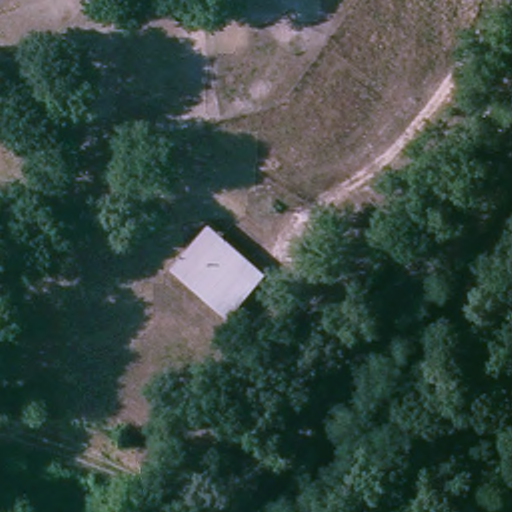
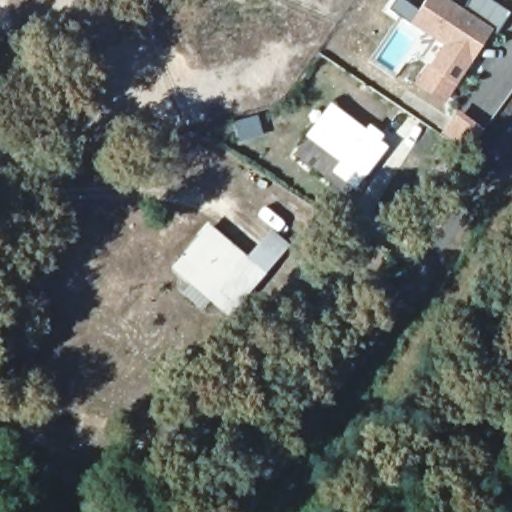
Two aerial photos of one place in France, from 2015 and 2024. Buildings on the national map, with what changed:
new [(511,13),(497,34),(491,30),(470,63),(445,105),(414,81),(426,64),(428,65),(431,62),(420,55),(430,39),(411,24),(388,10),(394,0),(403,0),(418,10),(426,0),(449,0),(462,10),(468,0),(491,0),(511,13)]
new [(389,147),(354,190),(331,174),(338,163),(305,137),(330,102),(364,130),(368,125),(382,135),(379,141),(389,147)]
unchanged [(208,226),(264,274),(225,315),(170,268),(208,226)]
new [(246,258),(244,256),(270,229),(290,246),(264,274),(246,258)]

